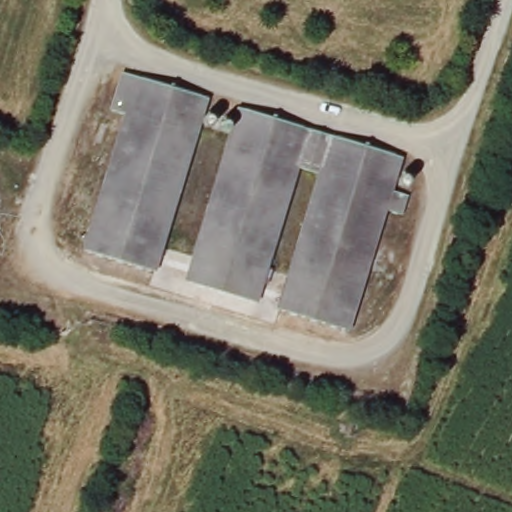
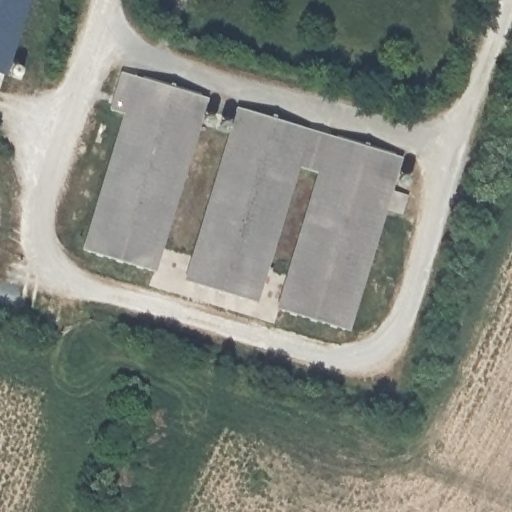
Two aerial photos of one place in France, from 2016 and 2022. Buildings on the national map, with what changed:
new [(17,64),(24,67),(24,70),(23,73),(21,76),(16,76),(13,75),(0,71),(0,0),(30,0),(10,64),(17,64)]
unchanged [(104,114),(118,67),(207,95),(151,277),(79,254),(120,118),(104,114)]
unchanged [(300,175),(258,308),(187,286),(242,105),(412,157),(357,339),(286,317),(326,183),(300,175)]
unchanged [(423,202),(416,226),(399,221),(407,197),(423,202)]

